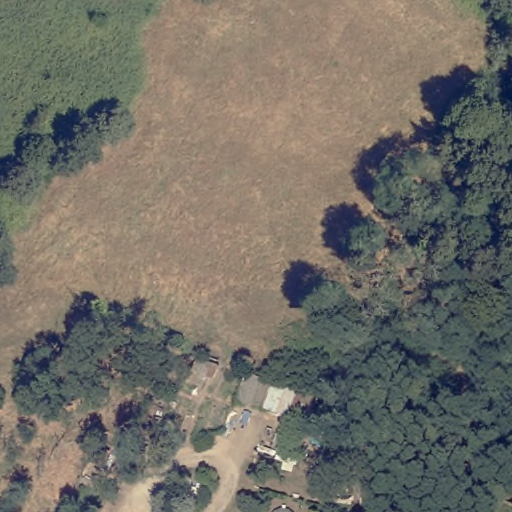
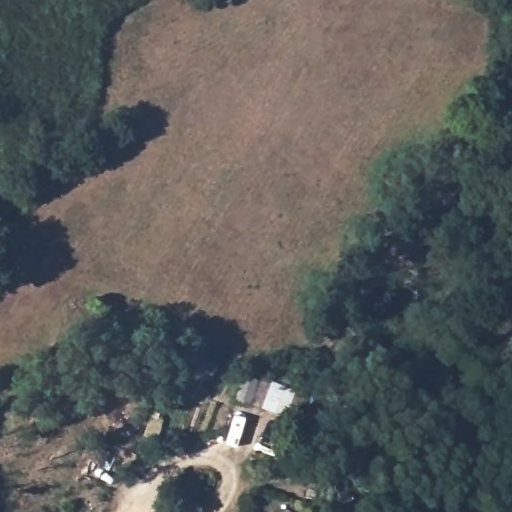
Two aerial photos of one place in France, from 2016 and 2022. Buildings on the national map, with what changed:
unchanged [(298,423),(234,401),(244,372),(306,393),(298,423)]

